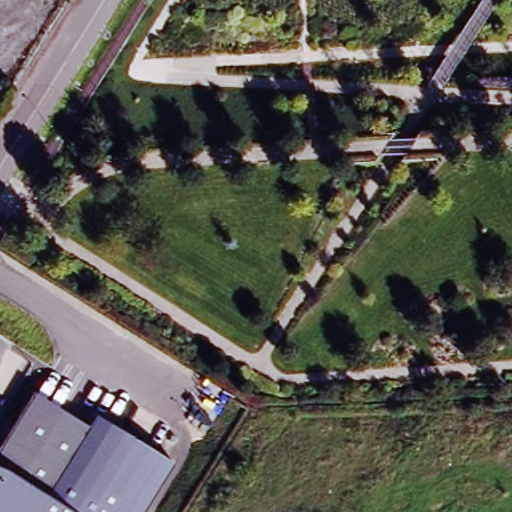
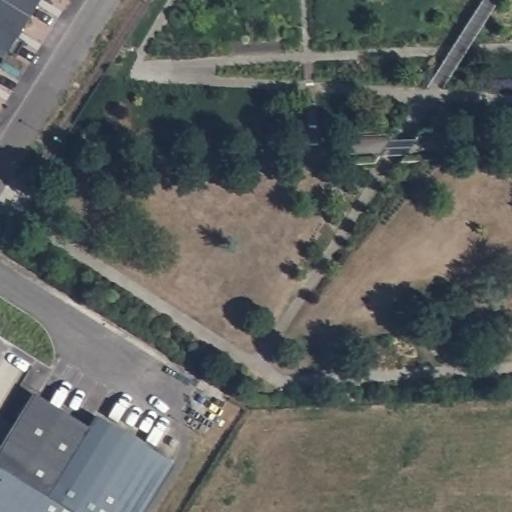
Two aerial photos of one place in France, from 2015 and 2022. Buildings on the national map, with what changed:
new [(5,52),(0,49),(0,0),(40,0),(5,52)]
unchanged [(147,512),(0,512),(0,456),(31,406),(39,395),(93,430),(100,418),(175,467),(147,512)]

